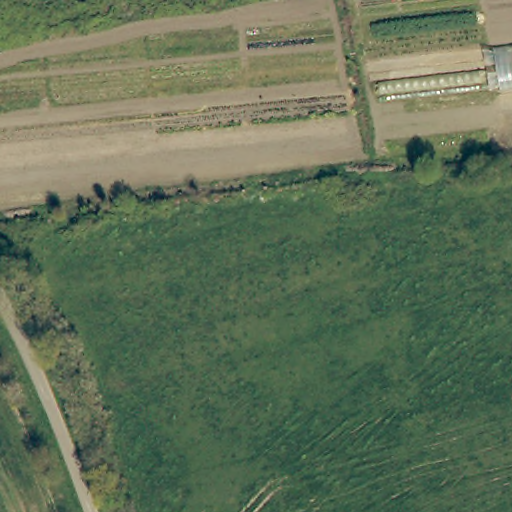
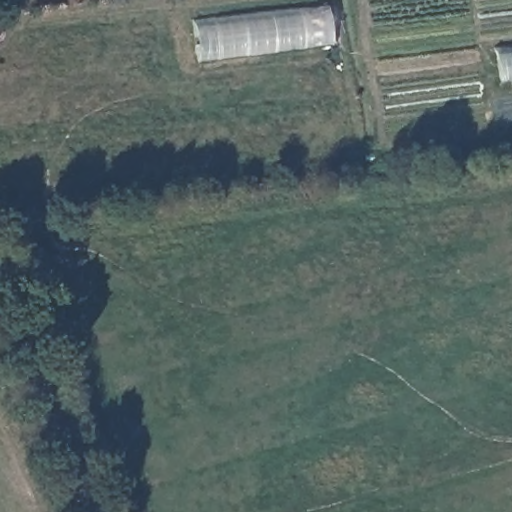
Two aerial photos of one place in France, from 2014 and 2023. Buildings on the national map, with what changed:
new [(199,64),(194,25),(328,7),(332,44),(199,64)]
unchanged [(507,89),(503,60),(512,59),(512,88),(507,89)]

